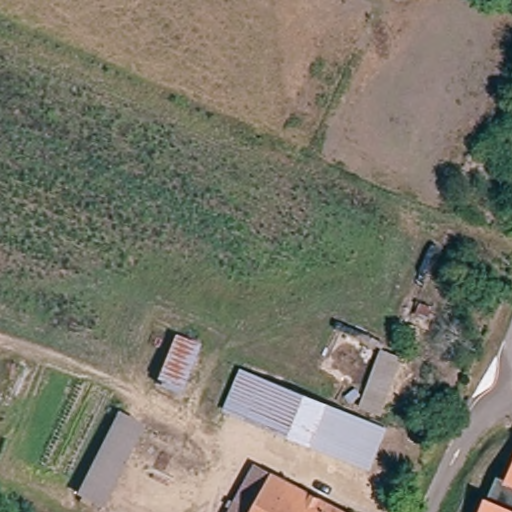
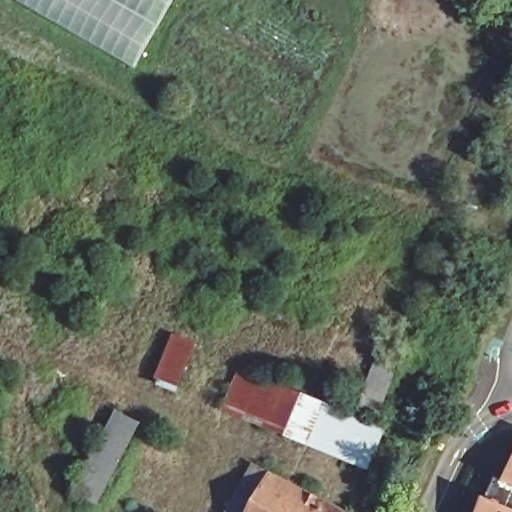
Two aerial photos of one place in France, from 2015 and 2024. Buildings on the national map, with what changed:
new [(15,0),(177,0),(137,70),(15,0)]
new [(175,335),(199,345),(180,393),(156,383),(175,335)]
unchanged [(406,365),(382,418),(365,410),(389,356),(406,365)]
unchanged [(378,434),(363,475),(260,428),(227,412),(246,374),(275,388),(378,434)]
unchanged [(146,432),(106,508),(105,512),(77,498),(120,421),(136,428),(146,432)]
unchanged [(338,512),(232,512),(255,469),(338,512)]
unchanged [(505,481),(512,483),(512,512),(494,512),(505,481)]

